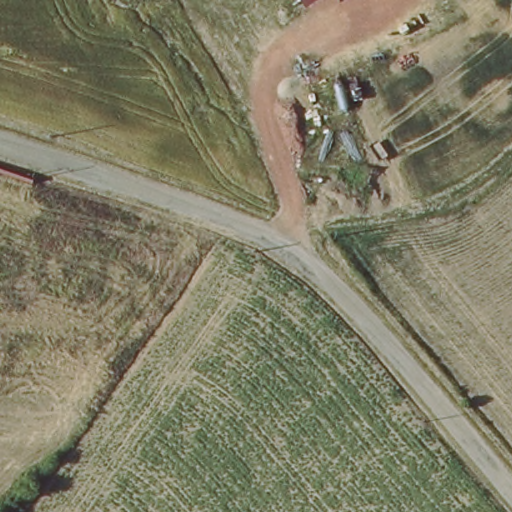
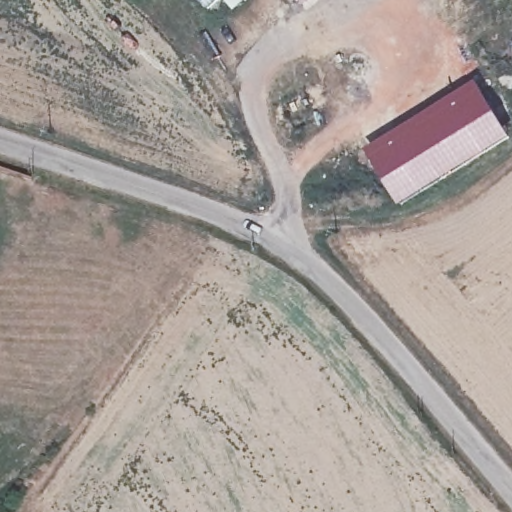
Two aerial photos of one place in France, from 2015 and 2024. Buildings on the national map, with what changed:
unchanged [(299,0),(319,0),(304,9),(299,0)]
new [(474,77),(512,137),(399,205),(361,147),(474,77)]

